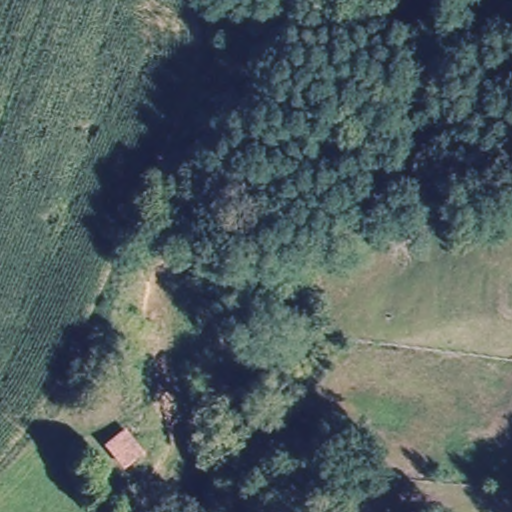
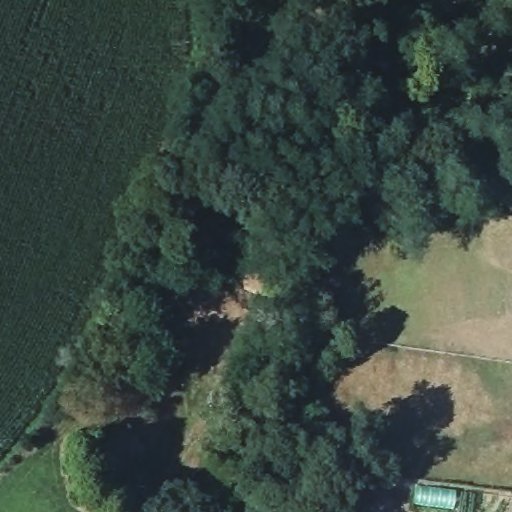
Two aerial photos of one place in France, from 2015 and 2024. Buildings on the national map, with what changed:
unchanged [(122,437),(119,437),(110,409),(123,405),(131,433),(122,437)]
unchanged [(120,471),(104,449),(122,437),(138,458),(120,471)]

